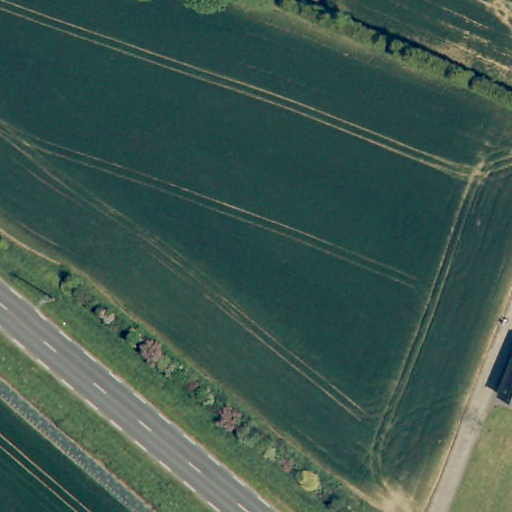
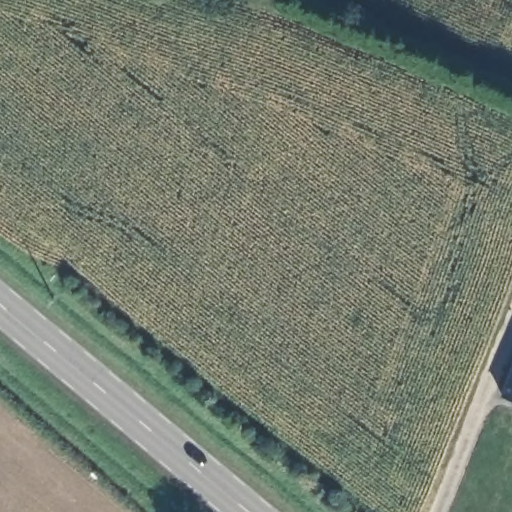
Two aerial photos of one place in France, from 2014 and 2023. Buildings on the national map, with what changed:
unchanged [(502,397),(512,373),(512,400),(502,397)]

